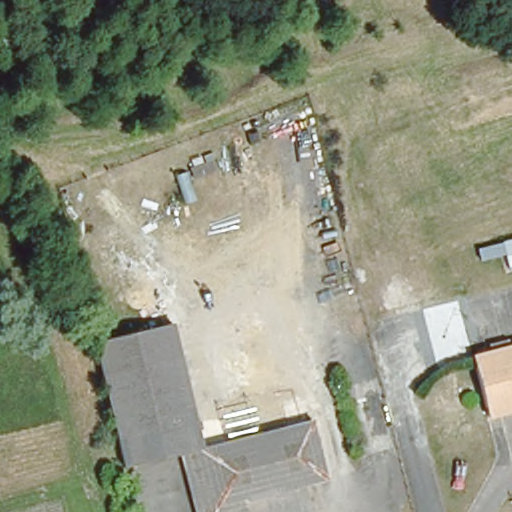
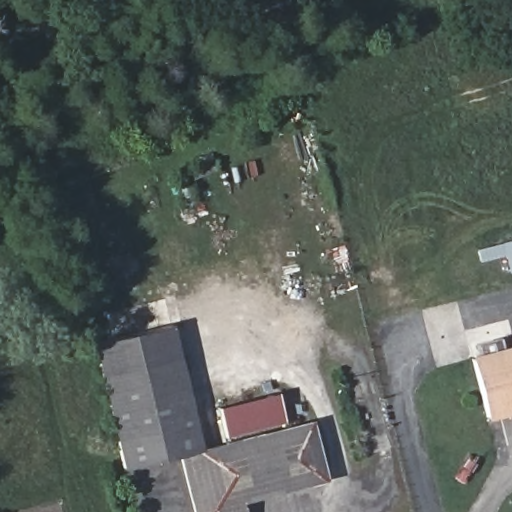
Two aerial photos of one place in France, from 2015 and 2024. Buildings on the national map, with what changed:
unchanged [(311,414),(329,470),(244,496),(249,512),(201,512),(183,454),(123,471),(86,347),(165,327),(200,448),(311,414)]
unchanged [(467,361),(512,349),(512,411),(483,418),(467,361)]
new [(284,419),(227,436),(219,406),(277,392),(285,419),(284,419)]

